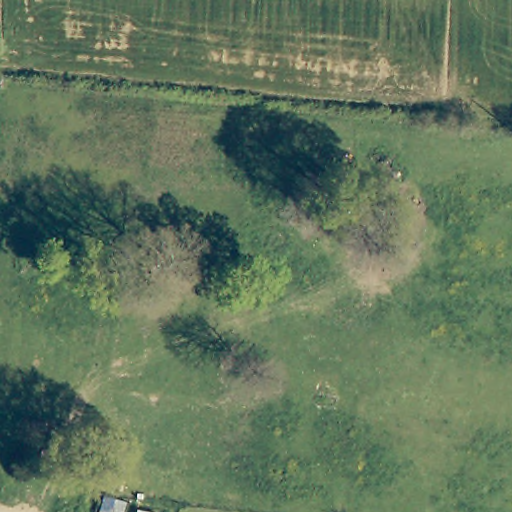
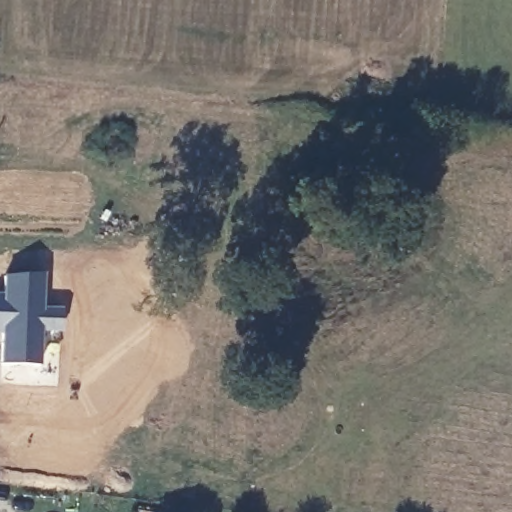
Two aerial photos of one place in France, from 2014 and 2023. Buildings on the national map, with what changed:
new [(7,310),(7,295),(4,295),(4,294),(5,275),(43,272),(42,308),(62,308),(61,331),(41,330),(40,366),(1,365),(2,332),(0,332),(0,310),(7,310)]
unchanged [(77,509),(80,492),(92,494),(90,510),(77,509)]

